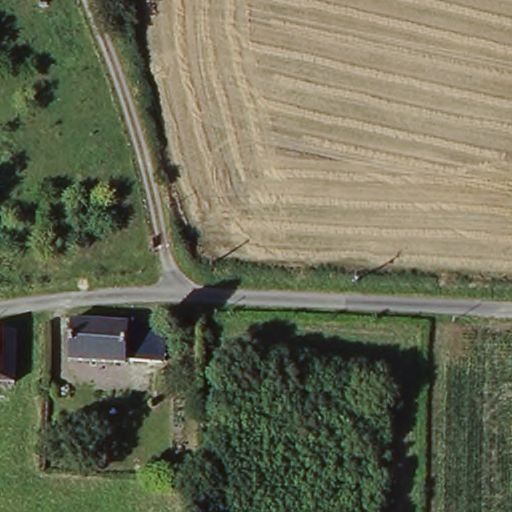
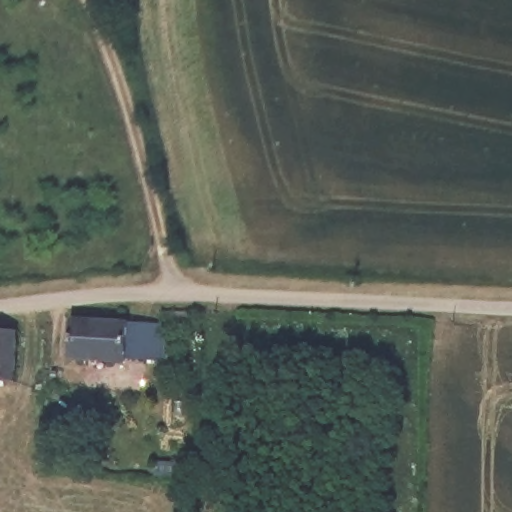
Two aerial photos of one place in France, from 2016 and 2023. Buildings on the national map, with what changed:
unchanged [(164,324),(161,357),(127,354),(127,361),(69,357),(72,320),(164,324)]
unchanged [(0,385),(0,330),(19,330),(17,385),(0,385)]

